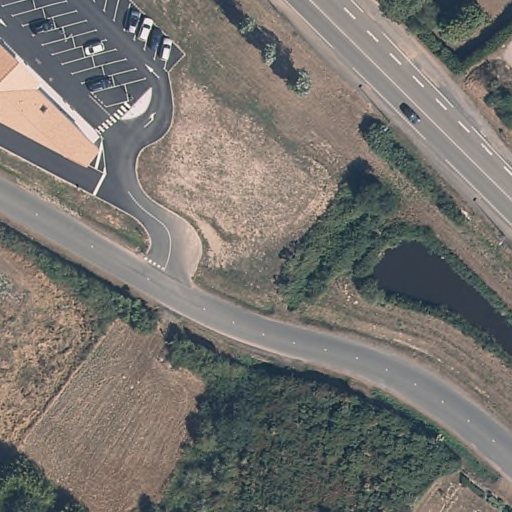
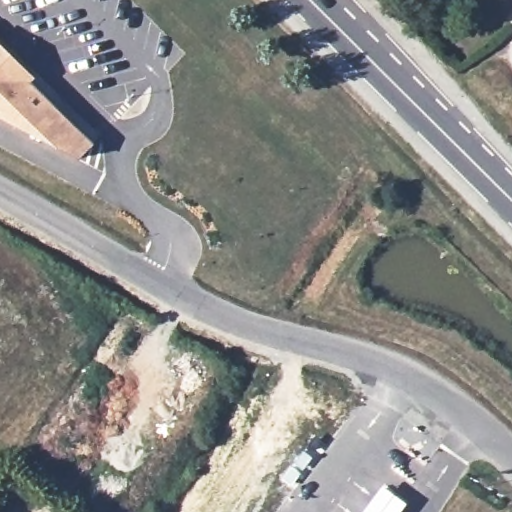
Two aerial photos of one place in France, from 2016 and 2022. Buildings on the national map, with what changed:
unchanged [(0,118),(0,43),(37,79),(32,85),(93,145),(81,160),(0,118)]
new [(382,485),(406,504),(400,512),(362,512),(382,485)]

